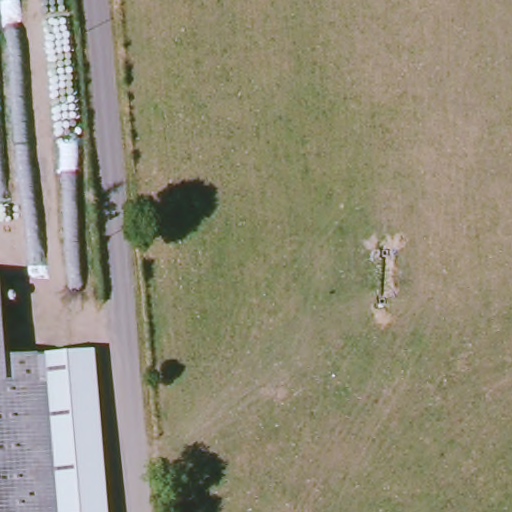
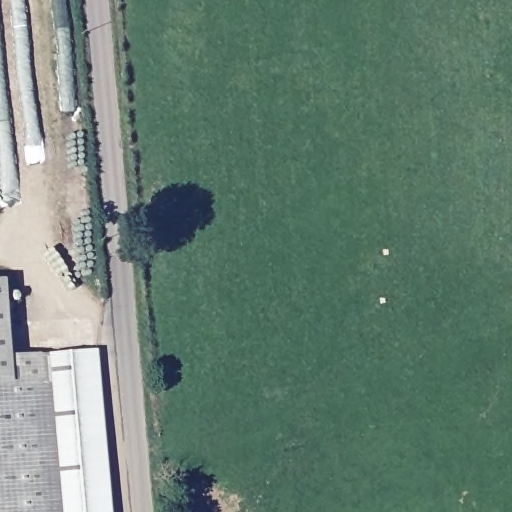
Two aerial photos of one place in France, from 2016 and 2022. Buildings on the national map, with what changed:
unchanged [(0,383),(0,282),(4,281),(10,358),(12,381),(0,383)]
unchanged [(113,512),(66,512),(53,354),(99,350),(113,512)]
unchanged [(10,358),(53,354),(66,512),(0,512),(0,383),(12,381),(10,358)]

